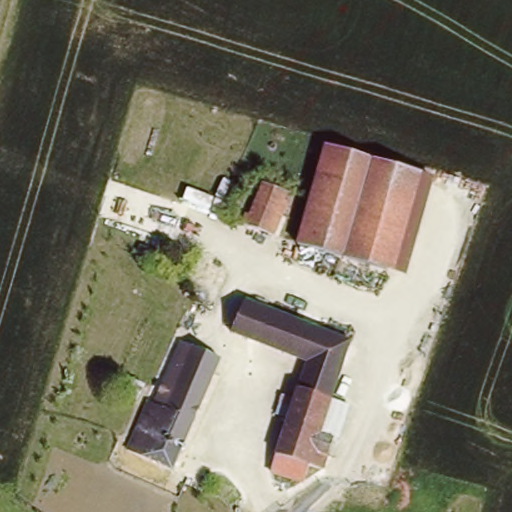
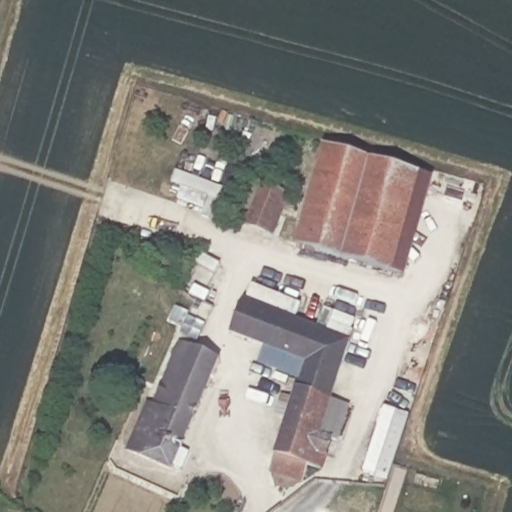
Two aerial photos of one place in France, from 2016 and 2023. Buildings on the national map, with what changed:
unchanged [(297,240),(326,147),(432,179),(403,277),(297,240)]
unchanged [(279,236),(250,224),(267,181),(296,192),(279,236)]
unchanged [(284,458),(279,456),(311,367),(237,339),(250,303),(357,343),(335,402),(355,408),(344,443),(340,442),(327,475),(302,465),(297,480),(279,472),(284,458)]
unchanged [(225,362),(179,473),(132,452),(152,405),(159,408),(185,346),(225,362)]

